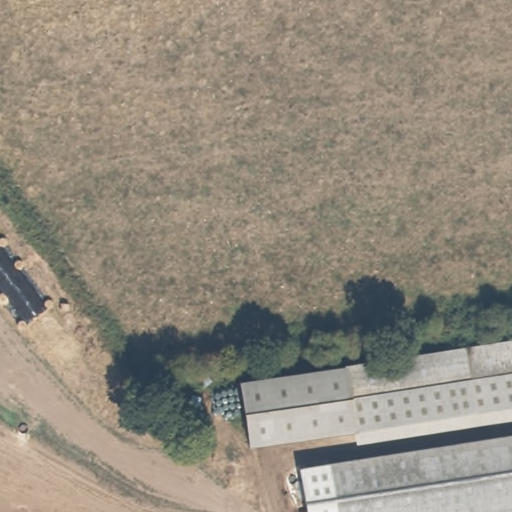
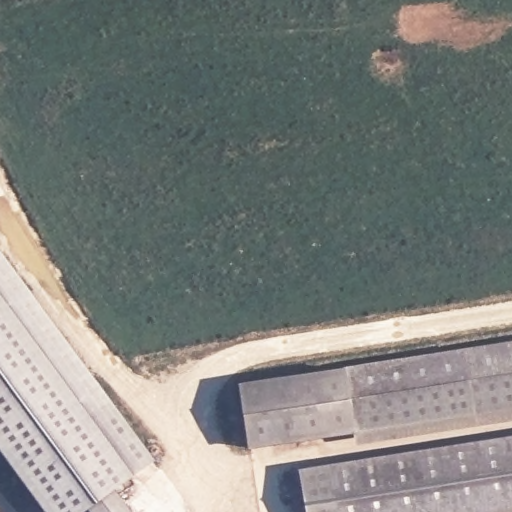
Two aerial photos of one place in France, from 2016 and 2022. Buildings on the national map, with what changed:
new [(116,488),(133,512),(90,512),(87,508),(81,512),(45,512),(0,451),(0,249),(153,457),(116,488)]
unchanged [(357,431),(249,452),(239,382),(512,339),(512,414),(357,438),(357,431)]
unchanged [(448,451),(512,442),(512,507),(470,512),(336,512),(328,467),(448,451)]

